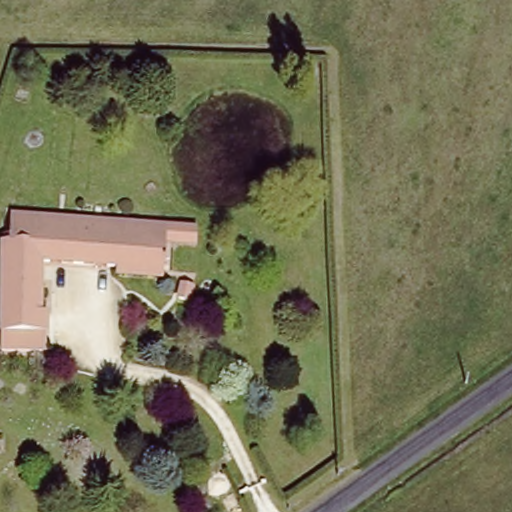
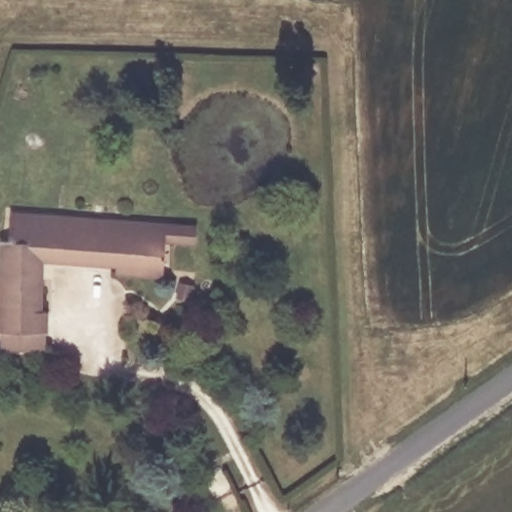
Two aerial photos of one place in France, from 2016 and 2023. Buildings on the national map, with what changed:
unchanged [(111,268),(36,263),(36,312),(42,312),(41,350),(0,349),(0,240),(5,240),(6,213),(157,224),(189,226),(189,240),(157,239),(157,271),(155,271),(111,268)]
unchanged [(190,294),(185,310),(174,307),(179,291),(190,294)]

